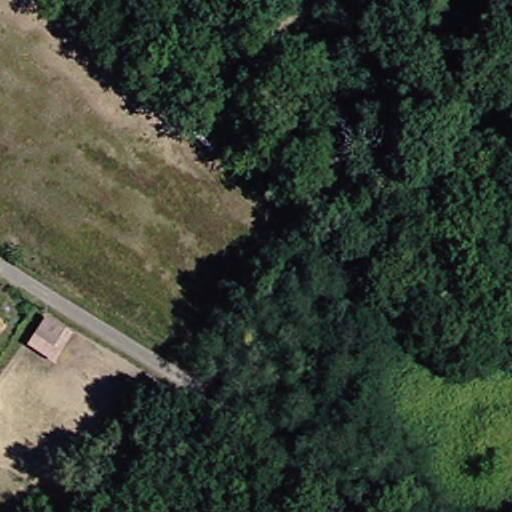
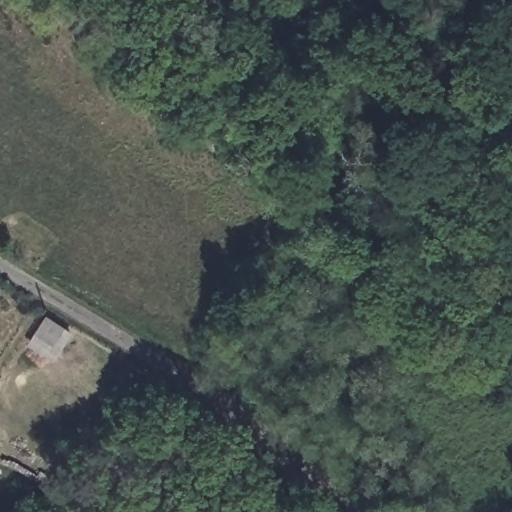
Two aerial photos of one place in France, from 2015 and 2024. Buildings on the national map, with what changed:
unchanged [(28,345),(46,315),(73,331),(55,361),(28,345)]

